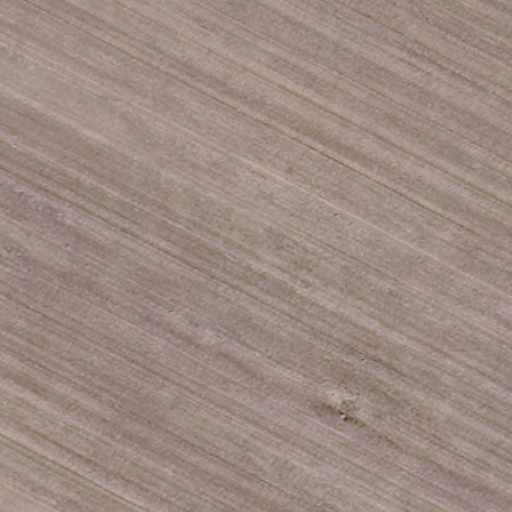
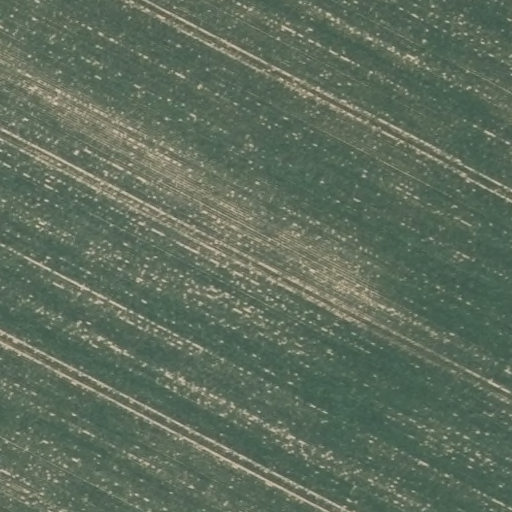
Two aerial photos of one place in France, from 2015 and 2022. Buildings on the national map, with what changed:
[]

